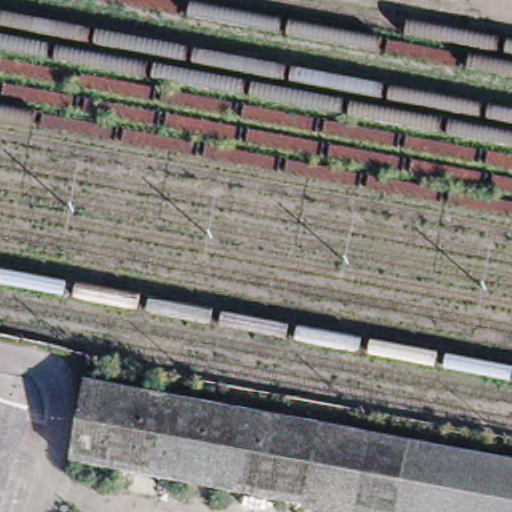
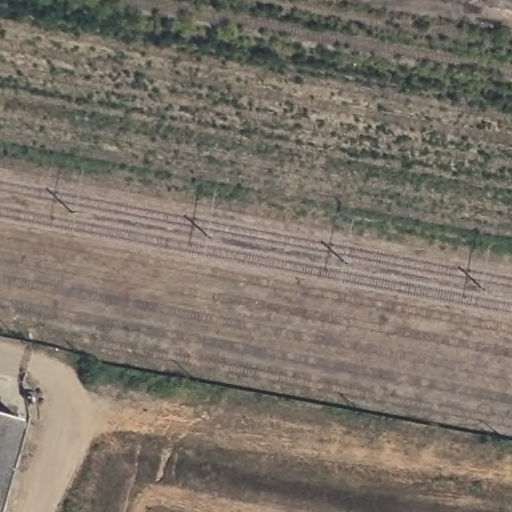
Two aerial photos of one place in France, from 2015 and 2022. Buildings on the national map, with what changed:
demolished [(512,467),(512,512),(345,512),(71,460),(84,386),(512,467)]
unchanged [(0,481),(0,415),(17,420),(0,481)]

